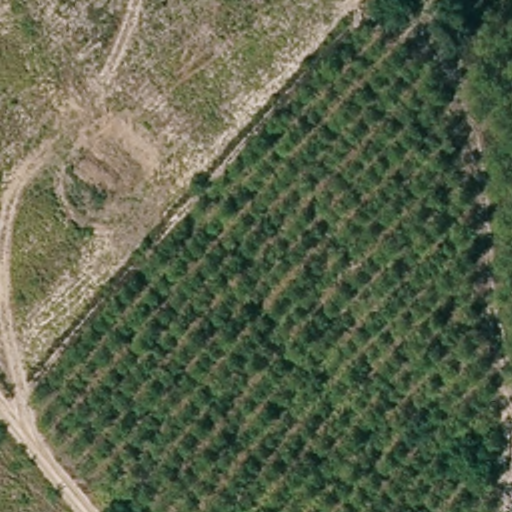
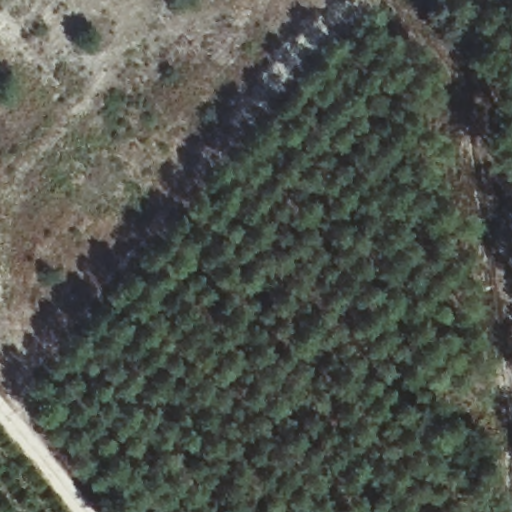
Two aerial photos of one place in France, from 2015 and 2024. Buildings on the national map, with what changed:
[]

